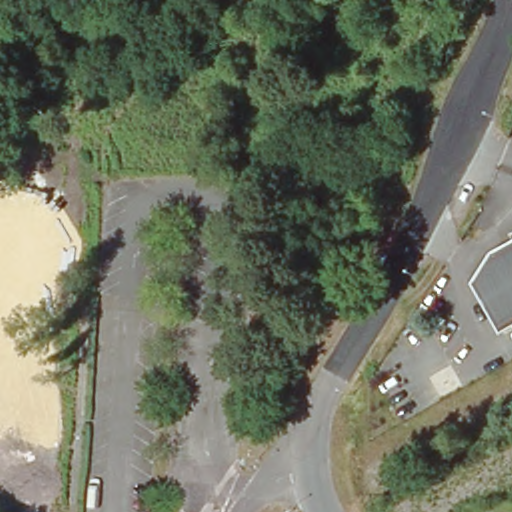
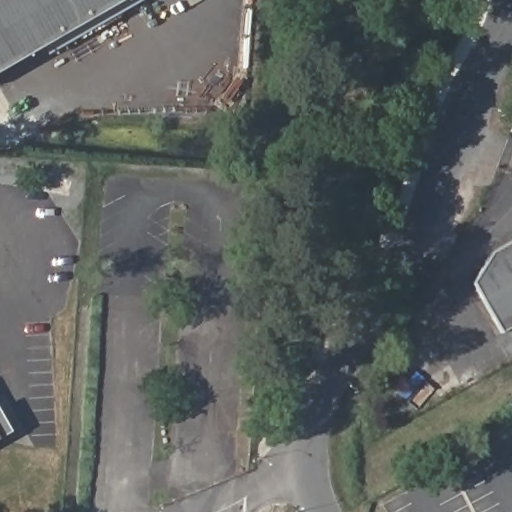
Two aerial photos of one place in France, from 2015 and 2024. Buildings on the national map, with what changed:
new [(40,46),(0,69),(0,0),(143,0),(46,55),(40,46)]
unchanged [(512,239),(512,324),(496,332),(472,282),(491,251),(512,239)]
new [(10,432),(0,438),(0,414),(10,432)]

